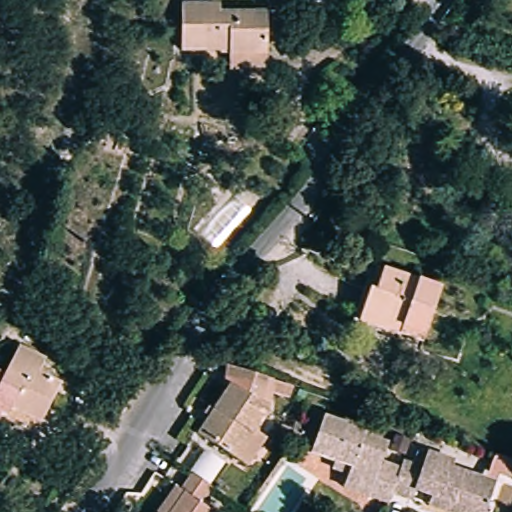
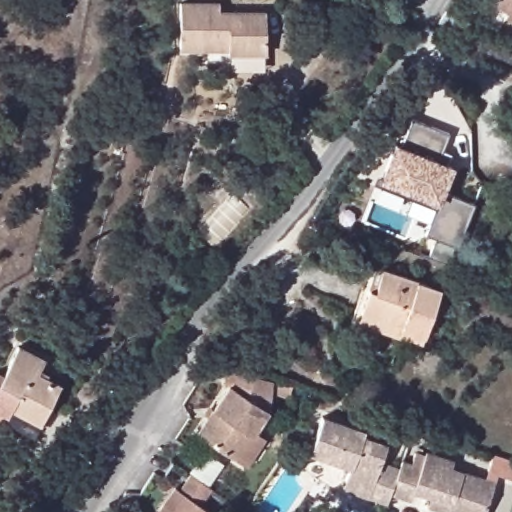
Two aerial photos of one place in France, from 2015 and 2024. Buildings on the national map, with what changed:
unchanged [(229,64),(229,49),(229,45),(180,45),(180,0),(219,0),(219,7),(266,7),(266,49),(266,64),(229,64)]
unchanged [(512,16),(488,0),(512,0),(512,16)]
unchanged [(324,28),(309,29),(308,4),(323,3),(324,28)]
new [(394,145),(400,147),(411,120),(448,134),(437,162),(450,168),(441,192),(474,205),(456,248),(424,235),(437,202),(380,180),(394,145)]
unchanged [(427,336),(404,328),(404,330),(363,317),(381,262),(445,282),(427,336)]
unchanged [(18,347),(44,360),(37,373),(59,385),(40,422),(11,407),(14,401),(0,394),(0,382),(18,347)]
unchanged [(260,426),(270,432),(251,462),(201,428),(233,381),(228,377),(231,360),(277,375),(297,382),(294,392),(276,386),(274,405),(260,426)]
unchanged [(310,447),(322,412),(364,427),(363,431),(386,439),(380,457),(400,464),(394,481),(392,488),(388,498),(343,483),(348,469),(332,464),(335,456),(310,447)]
unchanged [(414,485),(411,495),(392,488),(394,481),(400,464),(403,457),(420,462),(426,447),(454,456),(451,462),(495,477),(483,512),(462,512),(449,507),(429,501),(432,491),(414,485)]
unchanged [(512,474),(487,466),(494,449),(512,455),(512,474)]
unchanged [(211,488),(200,505),(210,512),(158,512),(175,487),(179,491),(191,474),(202,482),(211,488)]

